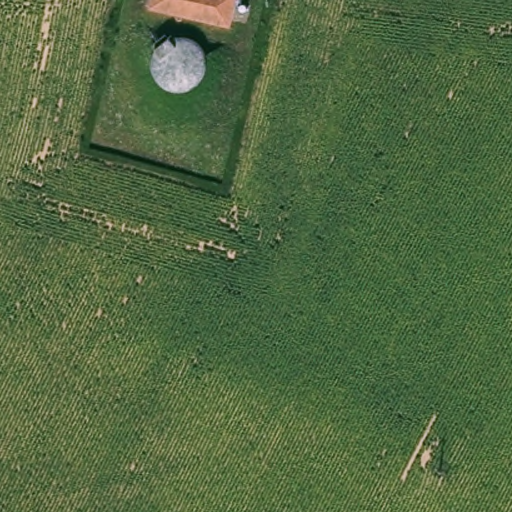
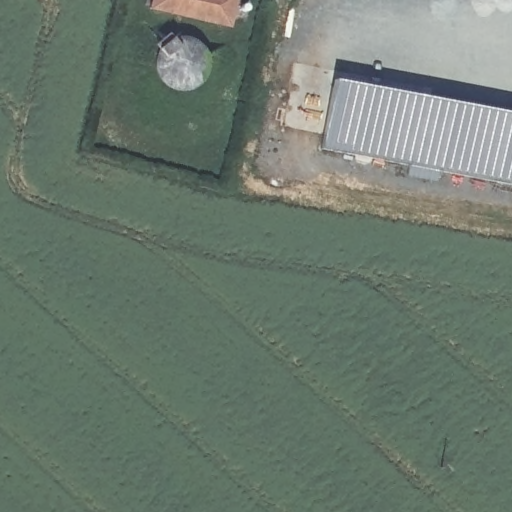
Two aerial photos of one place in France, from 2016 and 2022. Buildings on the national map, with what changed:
unchanged [(235,29),(154,10),(156,0),(239,0),(235,29)]
new [(512,106),(512,177),(323,148),(334,79),(512,106)]

